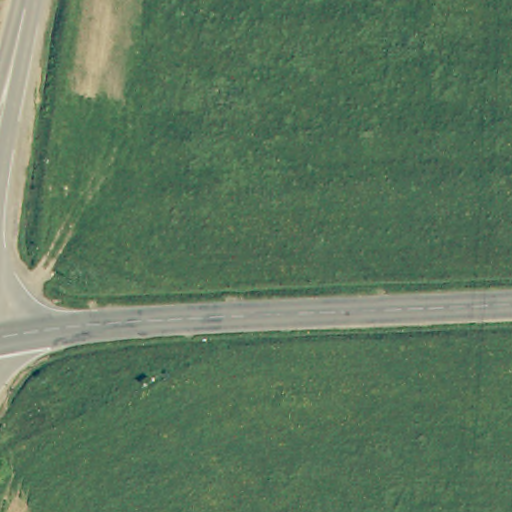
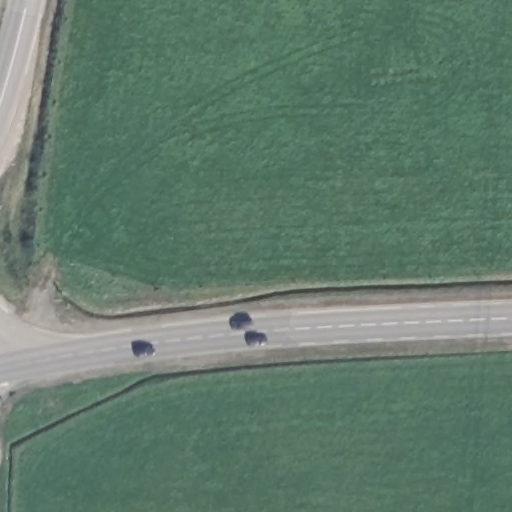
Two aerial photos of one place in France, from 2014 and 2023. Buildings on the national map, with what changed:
[]

